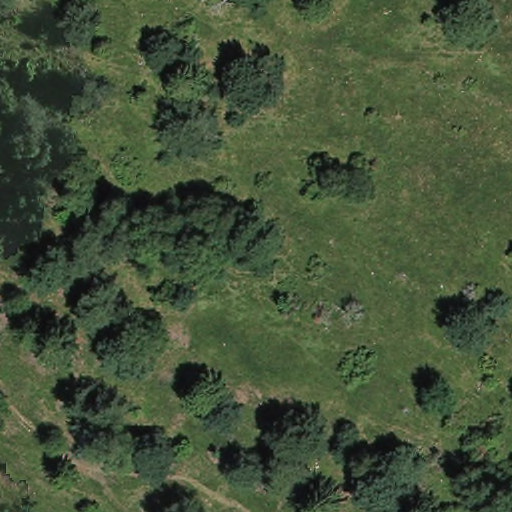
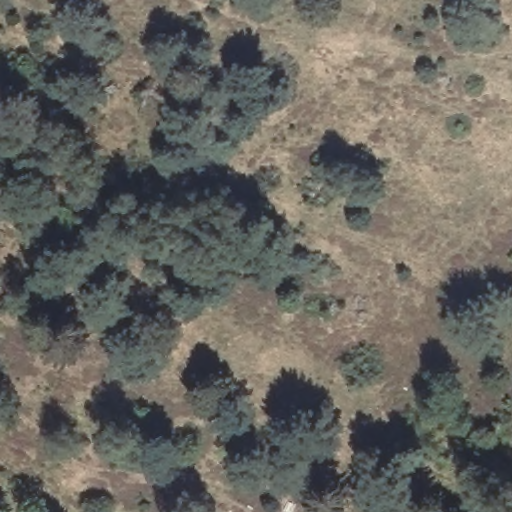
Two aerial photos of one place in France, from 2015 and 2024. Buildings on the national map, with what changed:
[]

